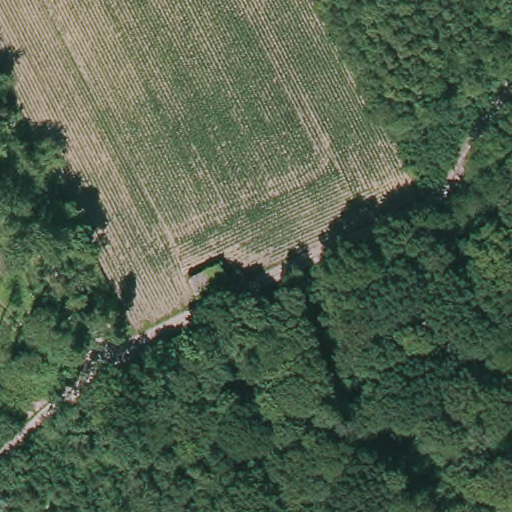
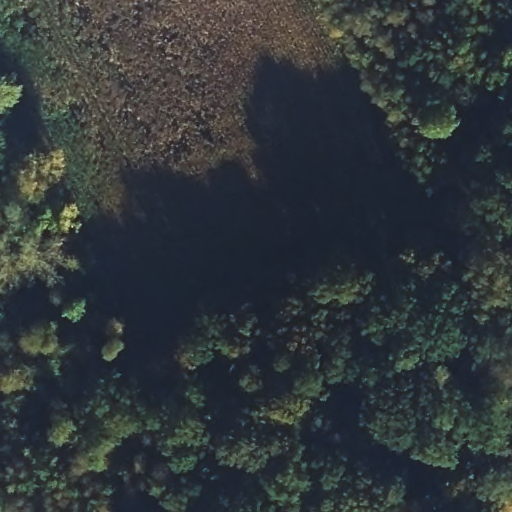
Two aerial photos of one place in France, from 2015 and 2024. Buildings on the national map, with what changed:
unchanged [(58,260),(66,282),(55,285),(40,243),(78,228),(89,248),(58,260)]
unchanged [(198,301),(186,279),(219,262),(231,282),(198,301)]
unchanged [(420,403),(408,382),(446,356),(455,376),(420,403)]

